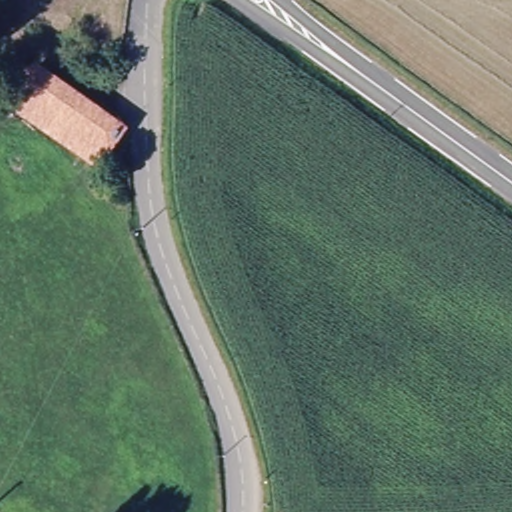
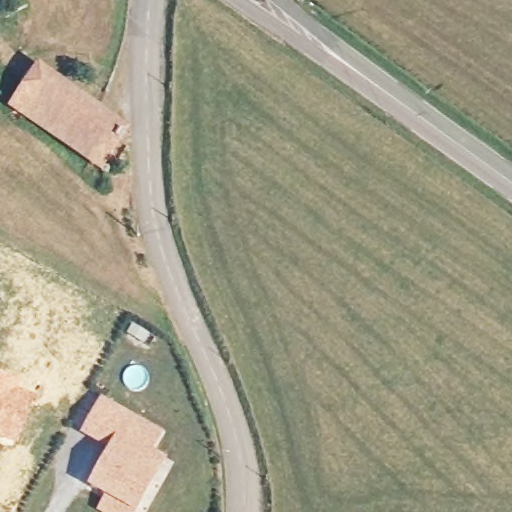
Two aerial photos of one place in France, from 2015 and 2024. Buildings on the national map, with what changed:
unchanged [(100,168),(107,174),(100,188),(75,169),(83,157),(13,106),(29,79),(23,74),(29,62),(125,126),(100,168)]
new [(19,389),(37,397),(16,444),(0,438),(0,374),(21,381),(19,389)]
new [(119,445),(91,430),(107,399),(165,429),(155,450),(168,456),(159,472),(141,506),(138,512),(118,512),(109,507),(116,493),(99,483),(119,445)]

